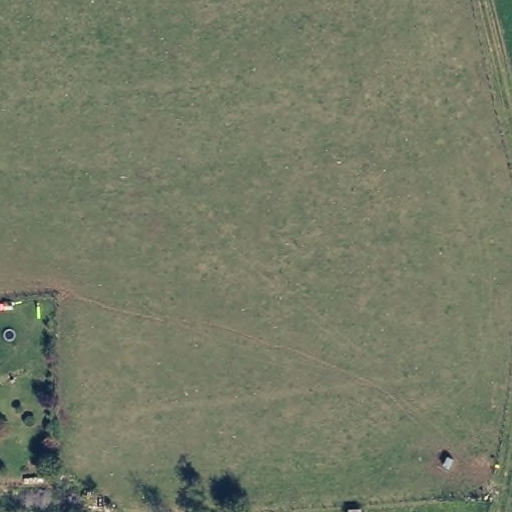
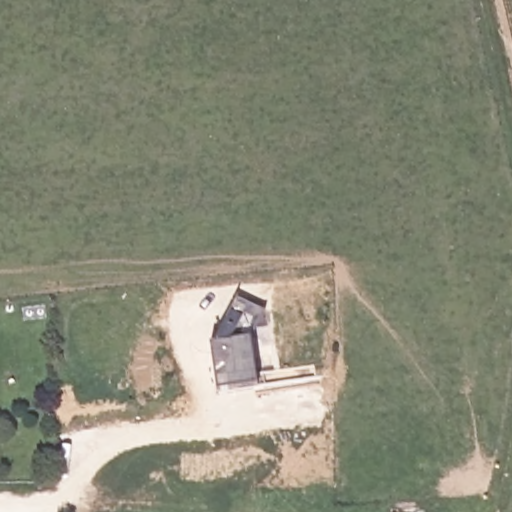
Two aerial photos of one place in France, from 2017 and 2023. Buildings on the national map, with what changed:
new [(211,346),(216,345),(237,298),(265,310),(250,340),(257,384),(217,392),(211,346)]

